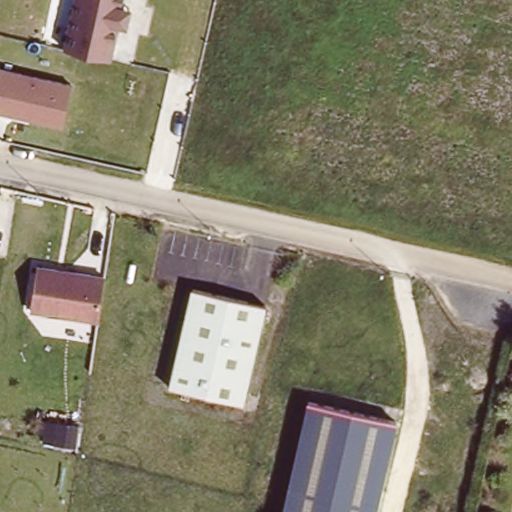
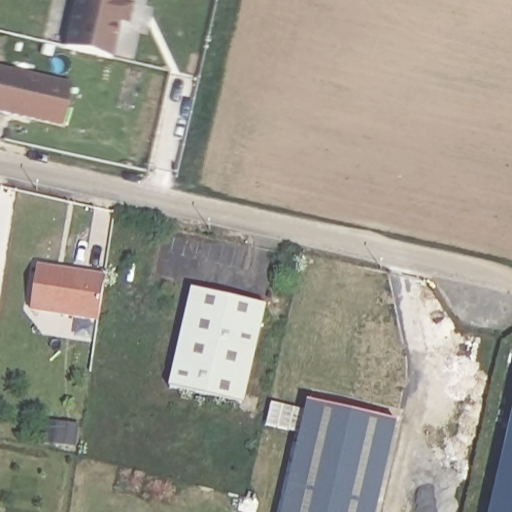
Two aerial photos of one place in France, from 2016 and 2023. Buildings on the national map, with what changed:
unchanged [(133,6),(126,29),(118,28),(113,58),(64,48),(74,0),(123,0),(123,4),(133,6)]
unchanged [(67,83),(64,96),(58,126),(0,113),(0,68),(67,83)]
unchanged [(33,310),(40,266),(108,278),(108,281),(101,321),(33,310)]
unchanged [(171,388),(192,300),(194,289),(267,306),(264,317),(244,405),(171,388)]
unchanged [(281,502),(301,417),(398,441),(381,512),(328,512),(281,502)]
new [(512,418),(512,512),(490,512),(512,418)]
unchanged [(281,502),(328,512),(279,512),(281,502)]

